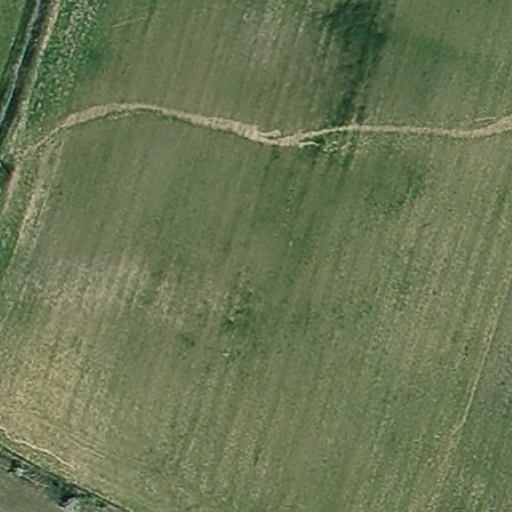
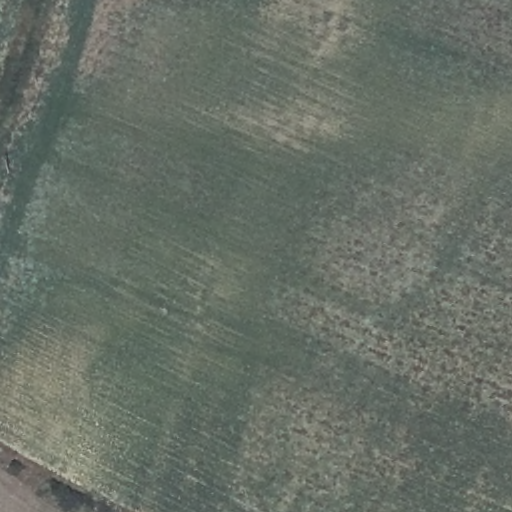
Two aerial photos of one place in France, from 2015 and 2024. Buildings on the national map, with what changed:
[]

